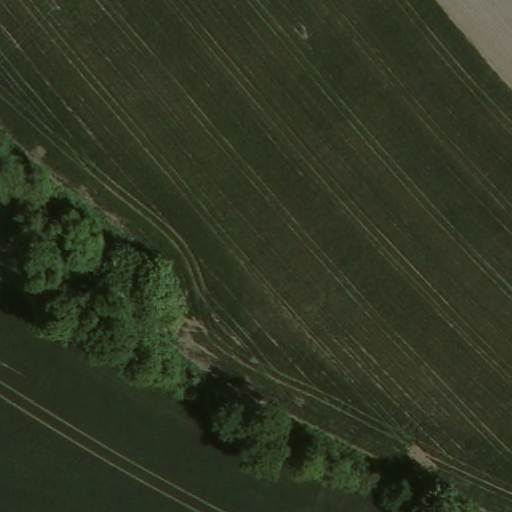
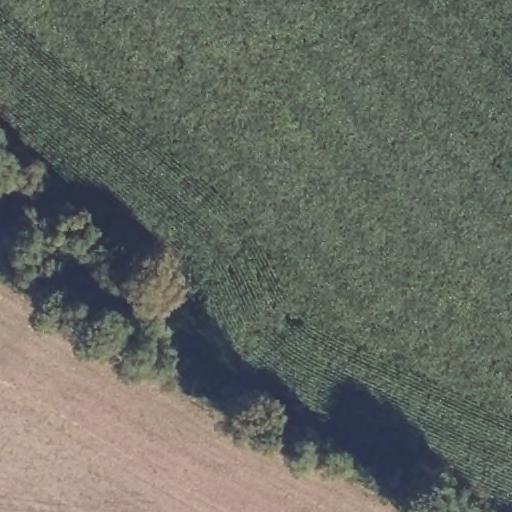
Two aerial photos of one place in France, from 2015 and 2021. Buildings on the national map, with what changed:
[]

